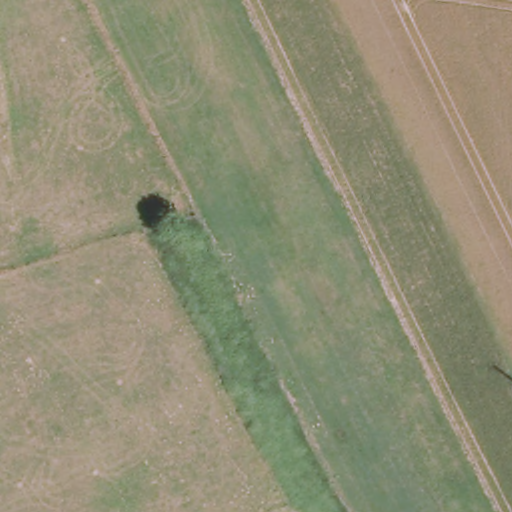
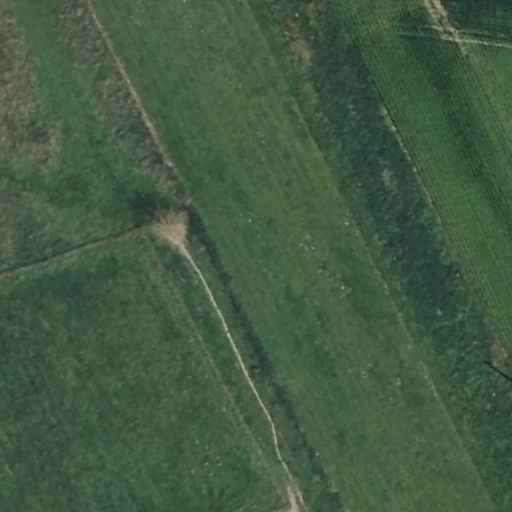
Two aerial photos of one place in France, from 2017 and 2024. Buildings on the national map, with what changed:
[]

